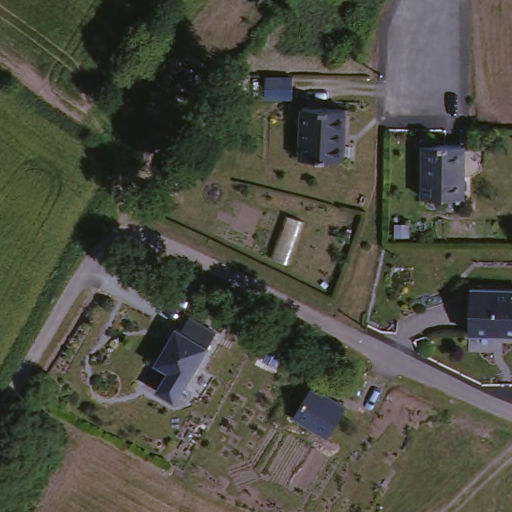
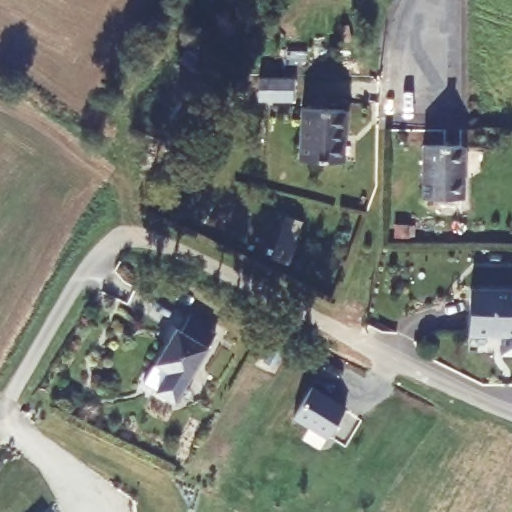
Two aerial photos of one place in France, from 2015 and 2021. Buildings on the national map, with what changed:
unchanged [(347,104),(348,126),(344,126),(343,157),(304,156),(304,104),(347,104)]
unchanged [(427,140),(467,140),(466,203),(426,203),(427,140)]
unchanged [(473,333),(474,288),(512,289),(512,334),(473,333)]
unchanged [(189,317),(218,333),(212,345),(181,397),(163,387),(169,370),(158,361),(178,326),(189,317)]
unchanged [(348,401),(330,431),(296,410),(315,379),(348,401)]

